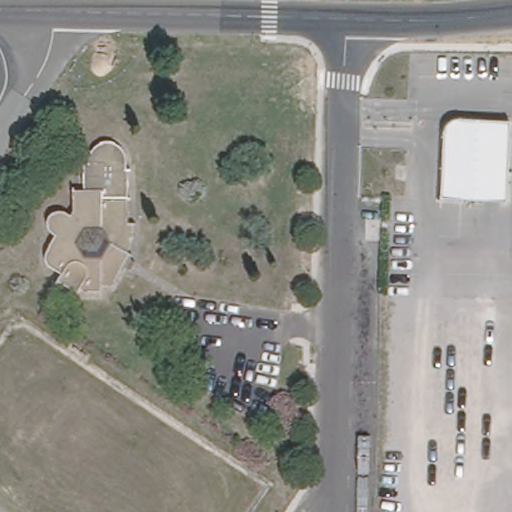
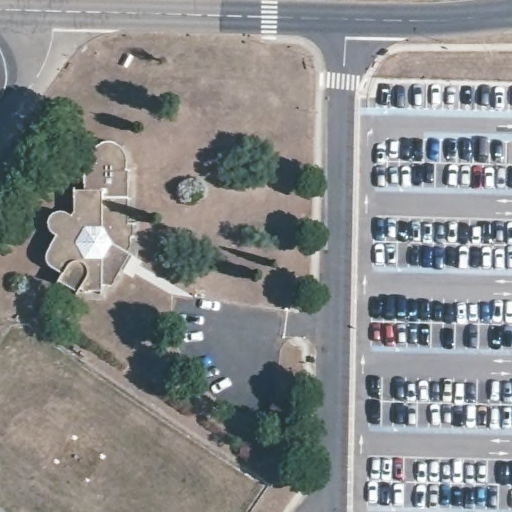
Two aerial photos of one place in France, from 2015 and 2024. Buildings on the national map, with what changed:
demolished [(467,168),(447,167),(449,129),(453,120),(458,116),(465,115),(512,118),(512,197),(466,195),(467,168)]
unchanged [(125,224),(133,224),(132,236),(127,236),(127,252),(124,254),(128,258),(110,286),(100,286),(100,291),(80,292),(78,287),(74,293),(58,280),(59,274),(53,269),(47,265),(47,260),(45,255),(47,250),(55,237),(51,232),(47,227),(46,222),(49,216),(52,212),(59,211),(63,212),(69,215),(74,210),(72,190),(82,190),(82,162),(90,162),(90,156),(91,151),(96,146),(99,144),(104,143),(110,143),(115,144),(118,147),(122,151),(124,157),(124,164),(125,200),(125,224)]

